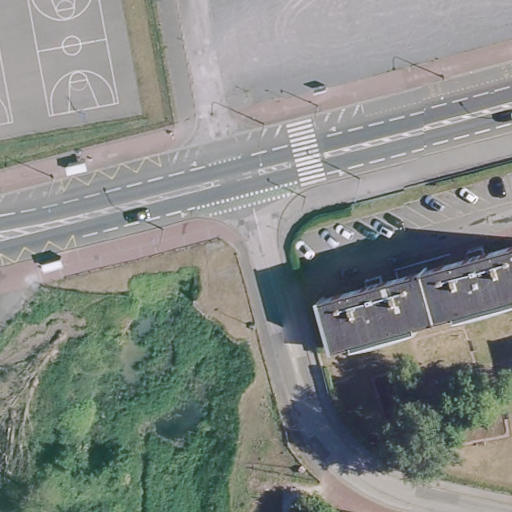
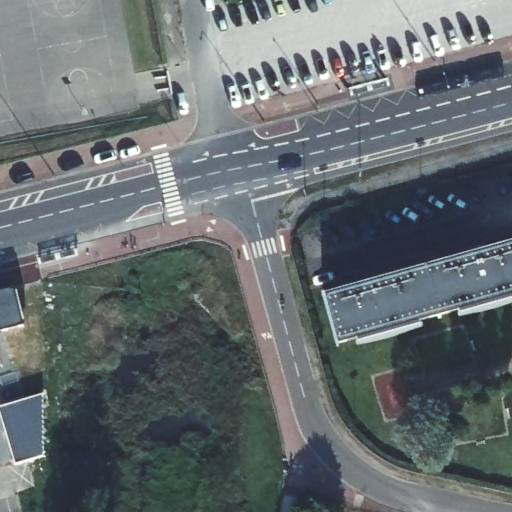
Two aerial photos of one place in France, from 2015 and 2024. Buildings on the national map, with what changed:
unchanged [(325,302),(512,251),(512,305),(340,351),(325,302)]
new [(24,325),(0,331),(0,292),(15,288),(24,325)]
new [(44,455),(16,464),(0,413),(0,408),(42,396),(44,455)]

